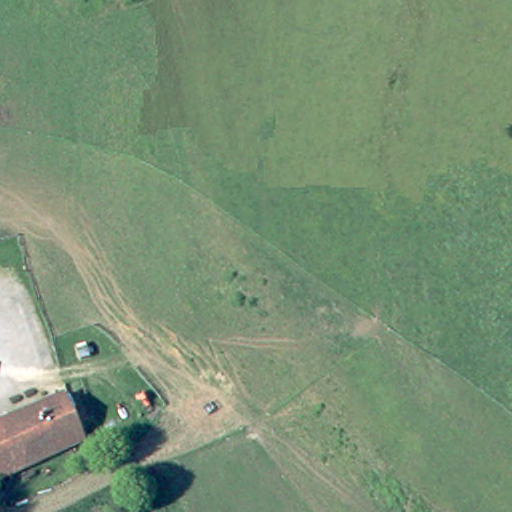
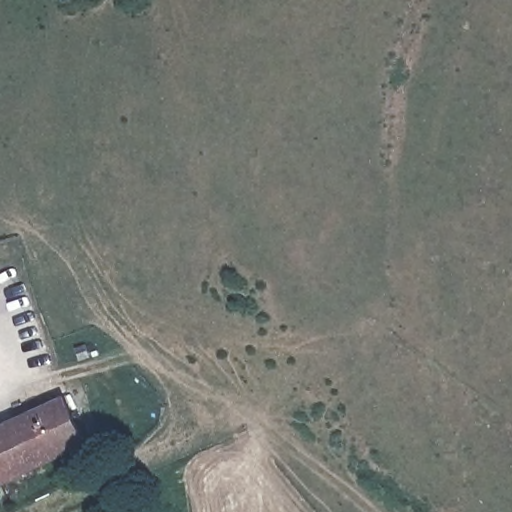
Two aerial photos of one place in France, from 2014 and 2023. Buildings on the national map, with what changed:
unchanged [(0,480),(0,424),(63,395),(84,440),(0,480)]

